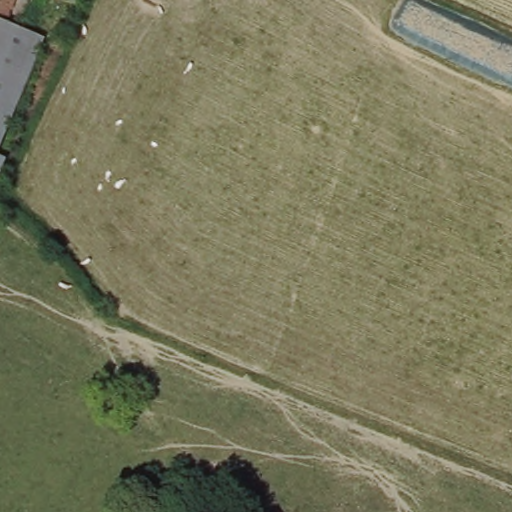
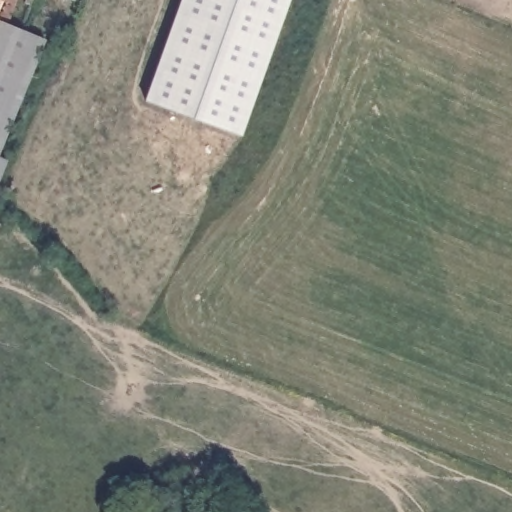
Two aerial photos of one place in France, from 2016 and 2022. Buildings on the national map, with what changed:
unchanged [(2,23),(0,23),(0,0),(12,0),(2,23)]
new [(144,100),(179,0),(288,0),(239,134),(144,100)]
unchanged [(21,31),(42,39),(0,145),(0,23),(2,23),(21,31)]
unchanged [(0,174),(0,161),(4,162),(0,174)]

